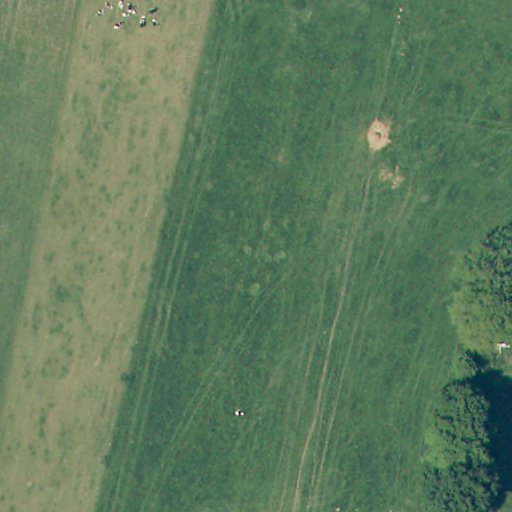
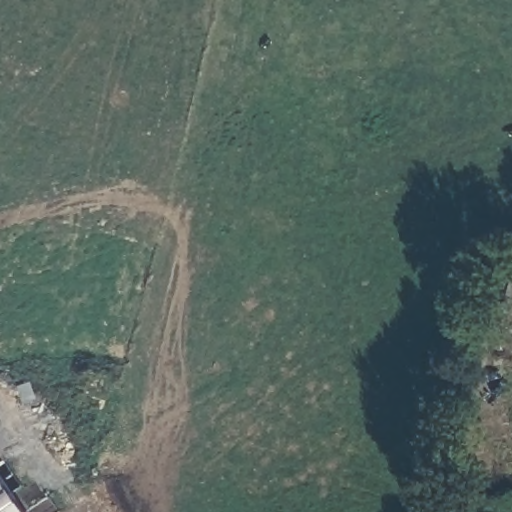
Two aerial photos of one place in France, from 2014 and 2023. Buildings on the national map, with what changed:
unchanged [(498,337),(482,391),(468,387),(483,333),(498,337)]
new [(0,512),(0,474),(26,512),(0,512)]

